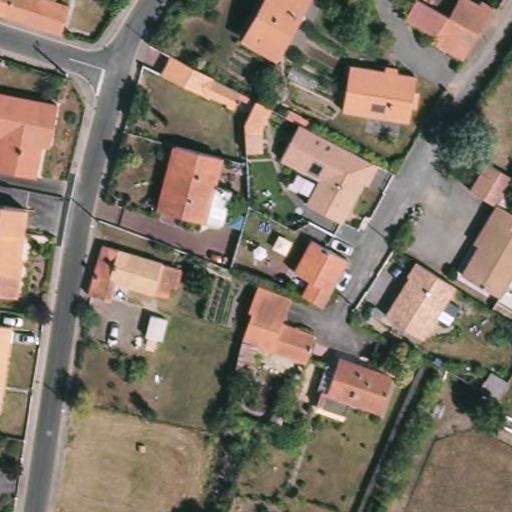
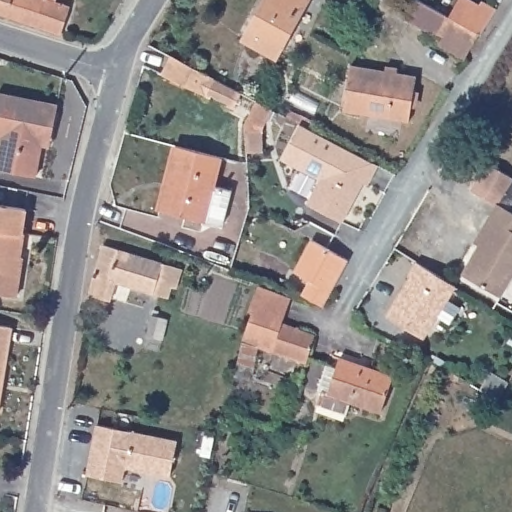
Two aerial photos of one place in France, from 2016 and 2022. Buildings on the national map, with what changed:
unchanged [(69,12),(60,38),(6,21),(0,19),(0,0),(56,0),(54,6),(69,12)]
unchanged [(243,42),(267,0),(311,0),(276,61),(243,42)]
unchanged [(447,21),(460,0),(461,0),(480,10),(482,6),(496,15),(480,40),(465,65),(432,47),(436,40),(406,23),(416,4),(423,8),(447,21)]
unchanged [(171,60),(241,98),(235,108),(210,95),(205,101),(160,79),(171,60)]
unchanged [(417,75),(411,122),(342,112),(350,65),(417,75)]
unchanged [(42,150),(36,181),(0,174),(0,146),(1,140),(0,140),(0,97),(57,107),(50,145),(50,151),(42,150)]
unchanged [(378,165),(367,187),(362,184),(342,225),(305,206),(318,179),(281,162),(297,124),(378,165)]
unchanged [(217,230),(199,225),(155,214),(170,151),(215,161),(218,149),(225,150),(221,164),(215,161),(207,190),(226,195),(217,230)]
unchanged [(490,206),(465,191),(483,161),(510,178),(512,179),(512,201),(505,211),(512,215),(512,269),(496,295),(458,274),(475,245),(470,242),(483,219),(490,206)]
unchanged [(21,215),(13,258),(18,260),(10,300),(0,299),(0,211),(21,215)]
unchanged [(313,245),(347,265),(321,310),(302,298),(310,285),(295,276),(313,245)]
unchanged [(140,261),(131,290),(115,285),(109,305),(90,298),(105,250),(140,261)]
unchanged [(182,275),(176,293),(172,292),(169,302),(131,290),(140,261),(182,275)]
unchanged [(423,340),(385,316),(408,277),(405,275),(415,261),(456,288),(423,340)]
unchanged [(249,316),(257,291),(291,303),(282,328),(316,340),(307,368),(259,351),(250,385),(235,380),(244,345),(242,345),(252,317),(249,316)]
unchanged [(166,320),(159,352),(144,348),(152,316),(166,320)]
unchanged [(11,332),(0,400),(0,330),(11,332)]
unchanged [(335,371),(339,361),(393,380),(381,416),(348,405),(345,416),(318,407),(322,396),(319,395),(328,368),(335,371)]
new [(92,443),(96,422),(177,438),(170,474),(125,465),(121,480),(86,472),(90,455),(92,443)]

